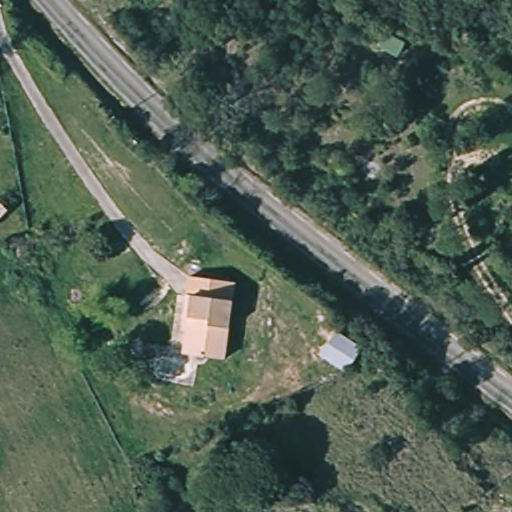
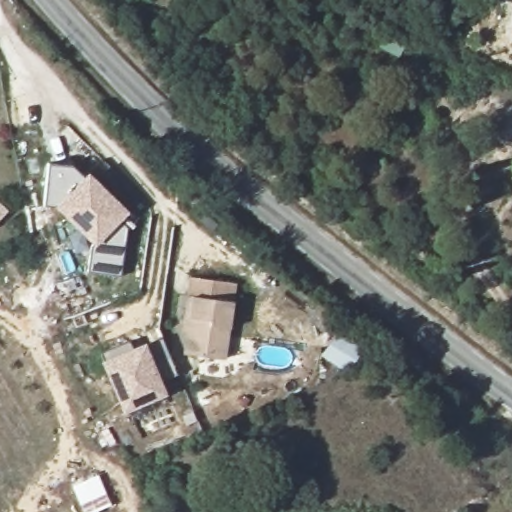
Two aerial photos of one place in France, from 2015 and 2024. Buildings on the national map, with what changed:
demolished [(512,40),(512,61),(510,61),(505,41),(512,40)]
new [(44,203),(47,163),(72,166),(85,178),(87,174),(125,212),(118,218),(127,227),(120,275),(85,270),(90,239),(57,205),(44,203)]
unchanged [(0,215),(0,212),(2,213),(0,215)]
unchanged [(185,300),(188,281),(233,287),(224,364),(184,359),(192,301),(185,300)]
unchanged [(317,352),(335,328),(360,346),(343,375),(317,352)]
new [(177,373),(160,380),(167,394),(123,412),(100,360),(98,352),(129,339),(132,346),(145,342),(162,338),(177,373)]
new [(97,512),(82,512),(70,484),(97,474),(111,506),(97,512)]

